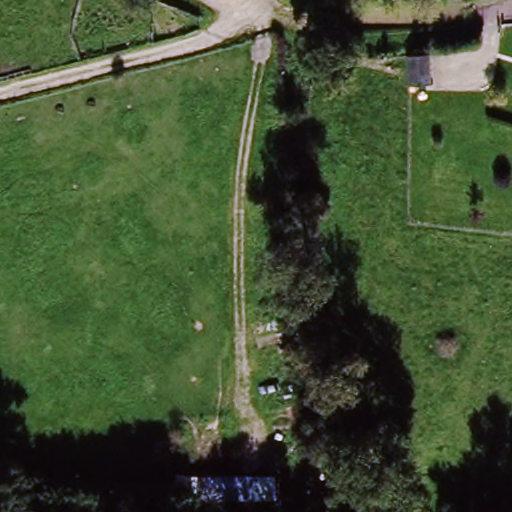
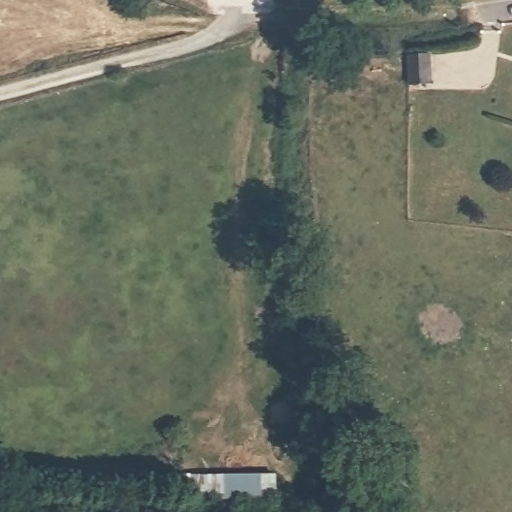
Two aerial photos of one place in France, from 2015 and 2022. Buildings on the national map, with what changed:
unchanged [(427,80),(410,82),(410,53),(432,54),(432,71),(427,72),(427,80)]
unchanged [(261,511),(225,512),(212,512),(211,476),(257,475),(261,511)]

